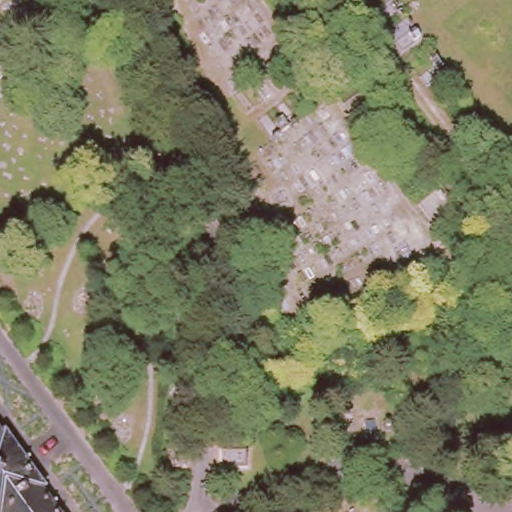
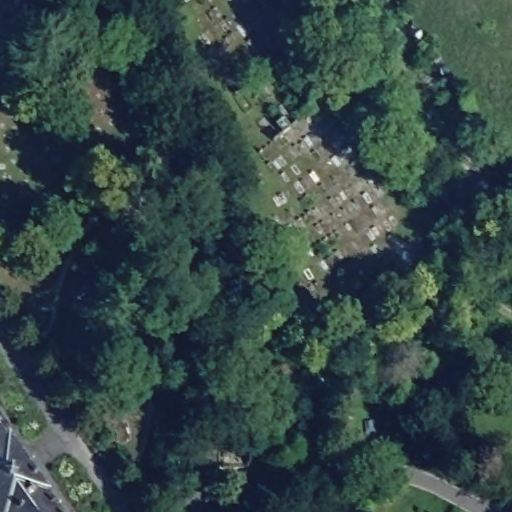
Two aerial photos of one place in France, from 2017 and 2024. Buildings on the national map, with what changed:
unchanged [(1,434),(4,431),(46,487),(41,490),(10,512),(0,512),(0,434),(1,434)]
unchanged [(0,434),(0,433),(1,434),(0,434)]
unchanged [(57,512),(10,512),(41,490),(57,512)]

